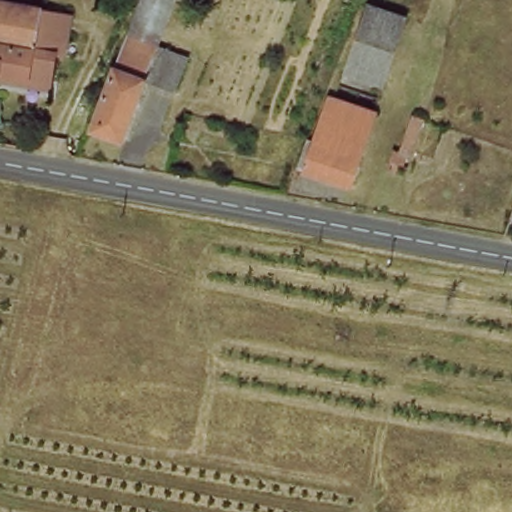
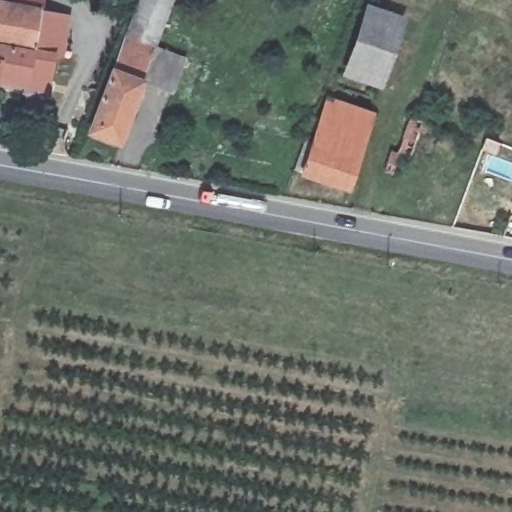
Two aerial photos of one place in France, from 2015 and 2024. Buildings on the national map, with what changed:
unchanged [(143,0),(173,0),(156,46),(130,36),(139,11),(143,0)]
unchanged [(34,12),(54,15),(55,19),(53,34),(33,30),(22,80),(0,77),(0,6),(34,12)]
unchanged [(402,33),(386,80),(347,65),(364,17),(402,33)]
unchanged [(130,36),(156,46),(190,59),(178,92),(147,80),(127,138),(97,128),(130,36)]
unchanged [(308,142),(316,144),(328,105),(373,121),(350,193),(297,173),(308,142)]
unchanged [(396,168),(413,117),(425,122),(408,172),(396,168)]

